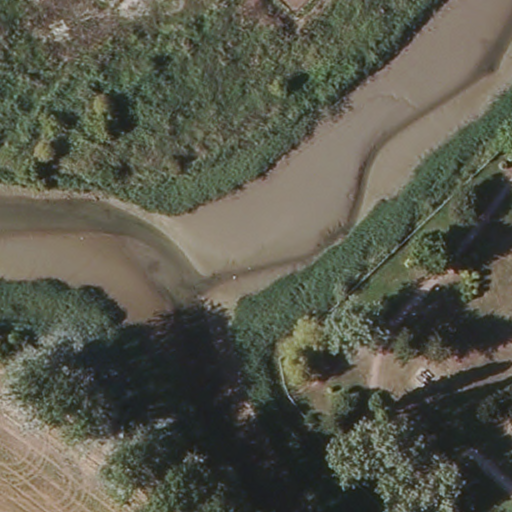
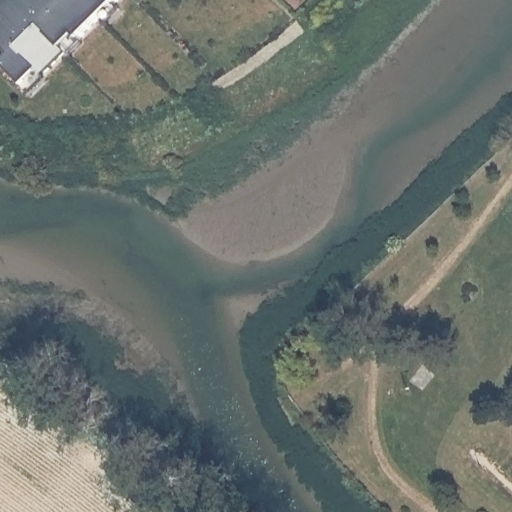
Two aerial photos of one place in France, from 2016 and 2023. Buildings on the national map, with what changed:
new [(71,49),(39,81),(23,89),(1,68),(9,55),(0,46),(0,15),(15,0),(123,0),(71,49)]
demolished [(433,352),(449,365),(435,382),(420,369),(433,352)]

